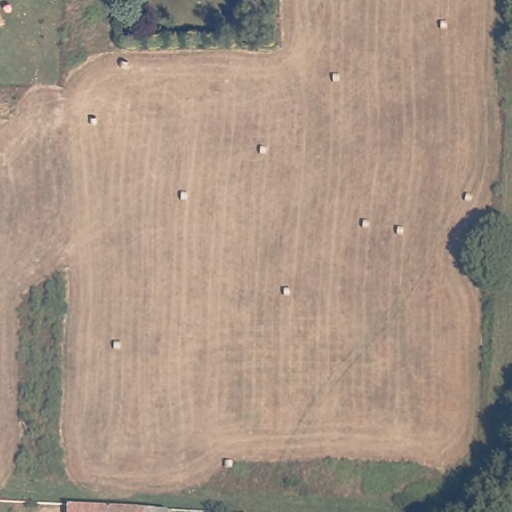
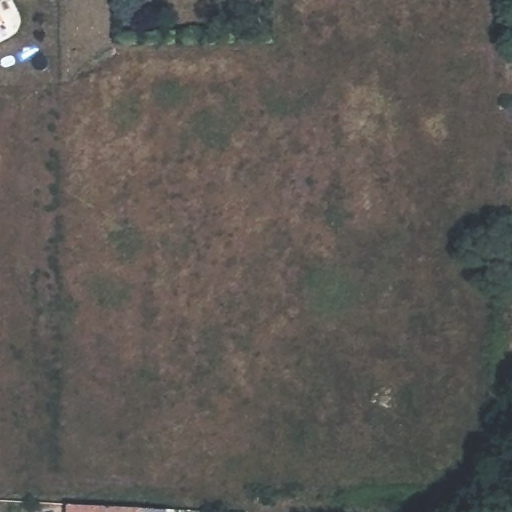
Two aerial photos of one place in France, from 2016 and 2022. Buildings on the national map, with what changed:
unchanged [(0,26),(0,8),(9,21),(0,26)]
unchanged [(77,502),(147,511),(147,512),(76,512),(77,502)]

